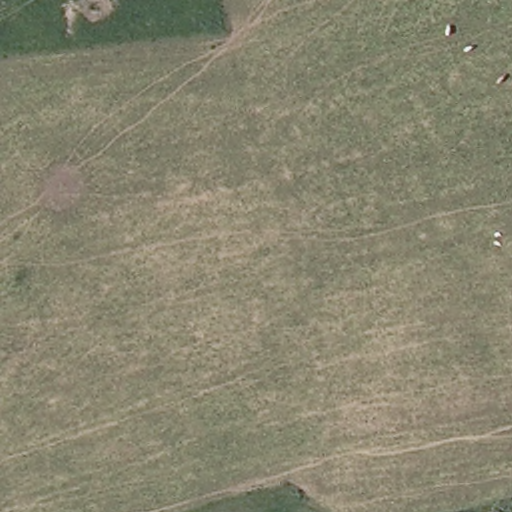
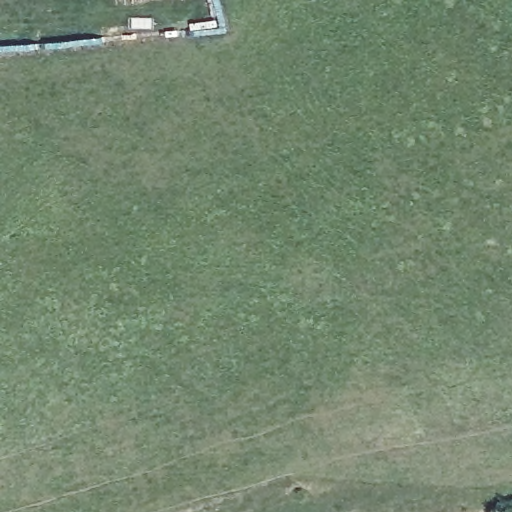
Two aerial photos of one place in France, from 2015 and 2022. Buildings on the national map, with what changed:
[]

